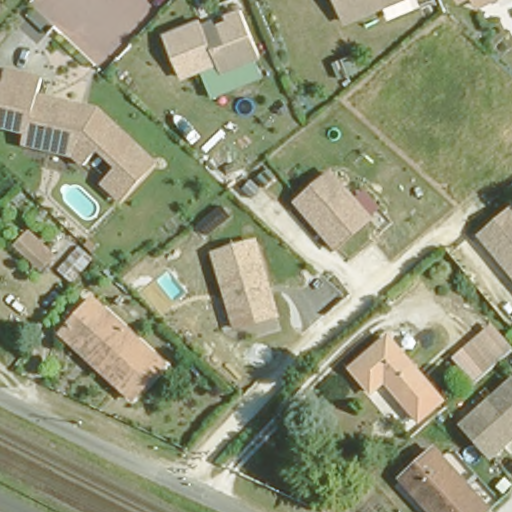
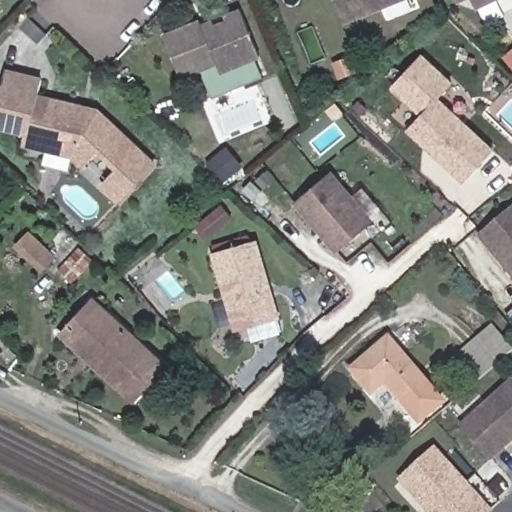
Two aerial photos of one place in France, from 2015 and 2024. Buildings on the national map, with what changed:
unchanged [(0,0),(2,0),(3,9),(0,9),(0,0)]
unchanged [(342,22),(333,0),(406,0),(342,22)]
unchanged [(456,2),(455,0),(463,0),(456,2)]
unchanged [(472,9),(469,0),(494,0),(472,9)]
unchanged [(247,61),(250,75),(226,85),(219,66),(179,80),(159,30),(199,17),(201,23),(241,7),(262,55),(247,61)]
new [(453,81),(439,96),(495,148),(463,184),(406,131),(421,116),(390,88),(423,52),(453,81)]
unchanged [(37,90),(56,95),(79,100),(97,104),(154,158),(121,194),(103,177),(118,161),(99,143),(84,159),(74,149),(25,138),(28,126),(0,120),(0,85),(5,64),(41,73),(37,90)]
unchanged [(337,253),(294,204),(333,170),(377,219),(337,253)]
unchanged [(477,234),(512,206),(512,277),(477,234)]
unchanged [(34,269),(6,240),(24,223),(50,252),(34,269)]
unchanged [(235,332),(212,252),(258,239),(282,318),(235,332)]
unchanged [(50,267),(76,241),(90,256),(65,281),(50,267)]
unchanged [(156,359),(124,392),(84,349),(90,343),(65,316),(91,290),(156,359)]
unchanged [(487,374),(464,348),(494,323),(512,346),(512,353),(487,374)]
unchanged [(423,426),(408,406),(389,382),(376,392),(358,368),(394,338),(433,386),(449,405),(423,426)]
unchanged [(493,458),(464,427),(512,383),(512,441),(493,458)]
unchanged [(474,512),(429,512),(391,474),(423,444),(482,504),(474,512)]

